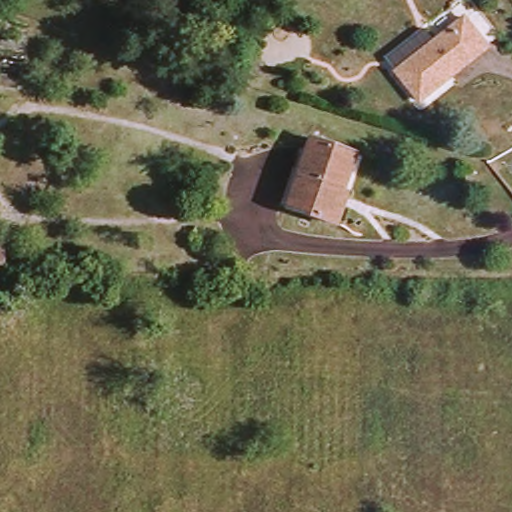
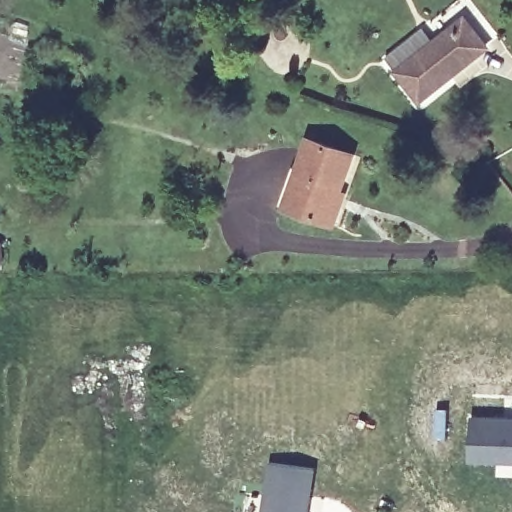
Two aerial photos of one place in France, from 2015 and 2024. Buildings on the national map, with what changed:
unchanged [(429,97),(404,70),(467,14),(491,40),(429,97)]
unchanged [(343,222),(332,219),(295,206),(319,137),(361,151),(348,189),(354,191),(343,222)]
new [(471,460),(473,413),(512,414),(512,460),(471,460)]
new [(315,467),(311,506),(311,512),(260,512),(265,461),(315,467)]

